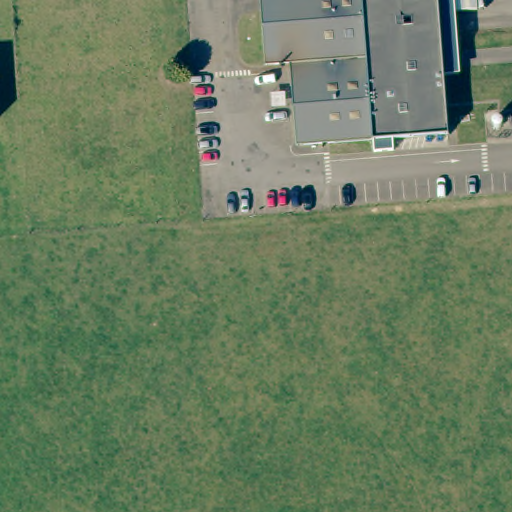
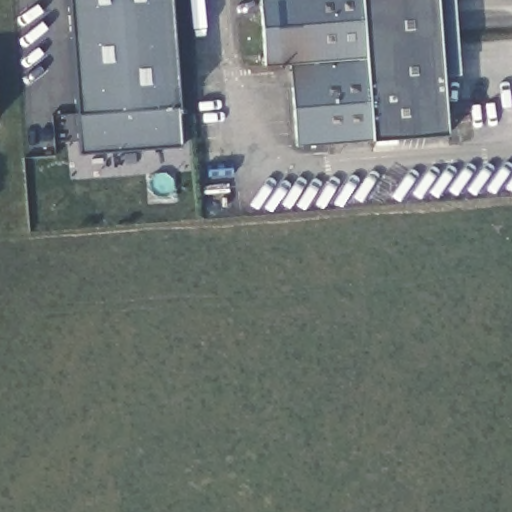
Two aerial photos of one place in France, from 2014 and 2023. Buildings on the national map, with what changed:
new [(181,147),(80,154),(68,0),(170,0),(181,147)]
unchanged [(372,145),(294,149),(288,67),(263,68),(261,0),(360,0),(372,145)]
unchanged [(444,140),(372,145),(360,0),(433,0),(444,140)]

